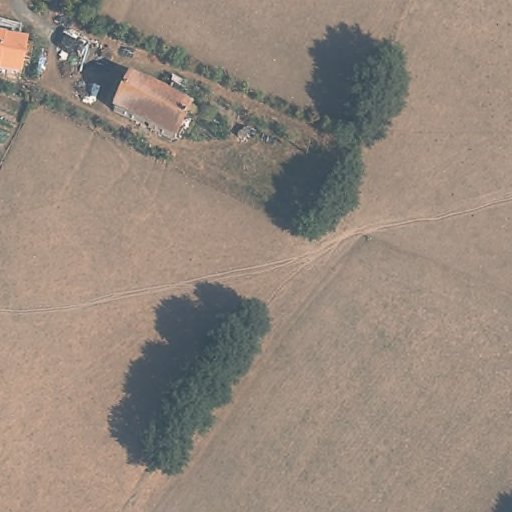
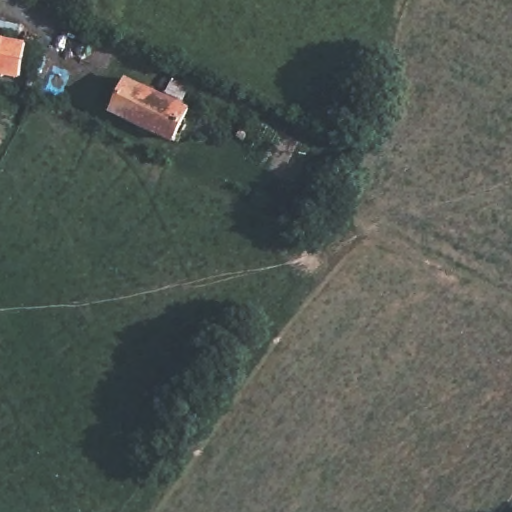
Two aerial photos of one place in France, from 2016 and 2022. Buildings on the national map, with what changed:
unchanged [(43,0),(81,0),(78,10),(43,0)]
unchanged [(23,44),(27,45),(22,75),(0,71),(0,39),(23,44)]
unchanged [(187,108),(172,139),(115,112),(130,80),(187,108)]

